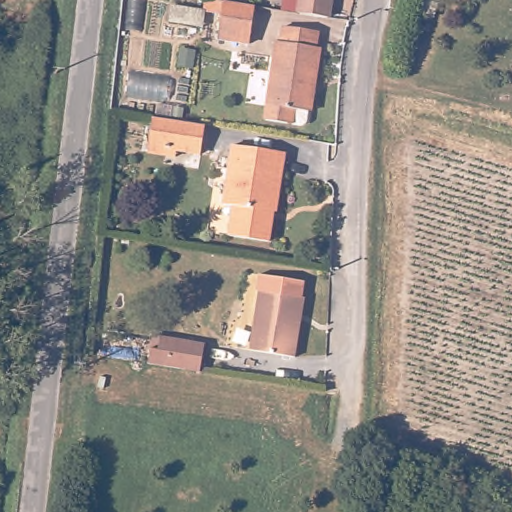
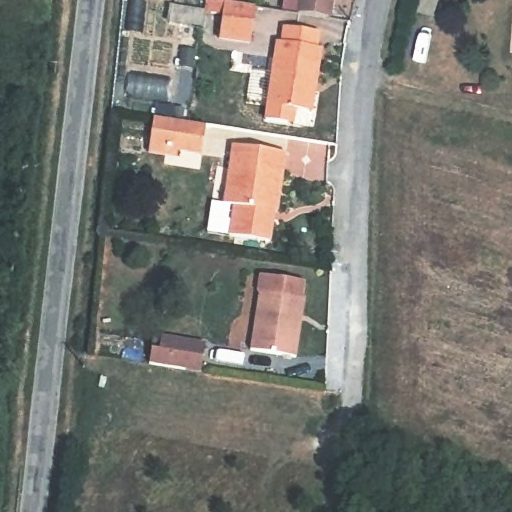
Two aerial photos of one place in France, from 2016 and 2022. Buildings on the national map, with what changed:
unchanged [(225,41),(230,17),(211,14),(212,0),(232,4),(262,10),(255,47),(225,41)]
unchanged [(302,0),(335,0),(331,19),(300,12),(302,0)]
unchanged [(307,126),(266,120),(267,110),(278,47),(279,42),(283,43),(287,26),(322,33),(320,50),(326,50),(320,87),(315,112),(309,111),(307,126)]
unchanged [(207,153),(174,147),(172,154),(155,150),(161,116),(211,125),(207,153)]
unchanged [(273,210),(271,210),(265,240),(232,234),(237,205),(227,204),(237,145),(282,152),(273,210)]
unchanged [(305,301),(307,302),(297,360),(257,353),(267,295),(265,295),(267,280),(307,287),(305,301)]
unchanged [(158,331),(167,332),(211,340),(206,370),(153,360),(156,345),(158,331)]

